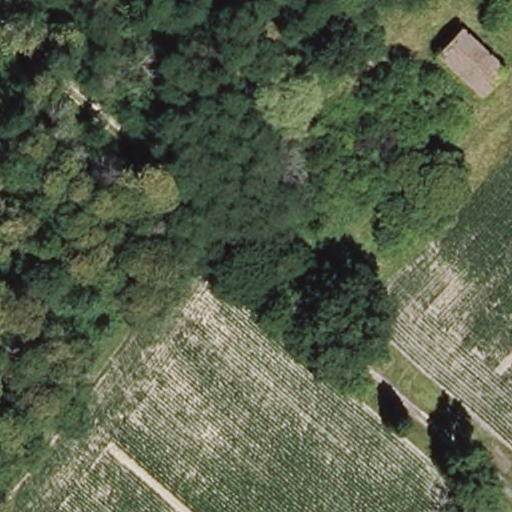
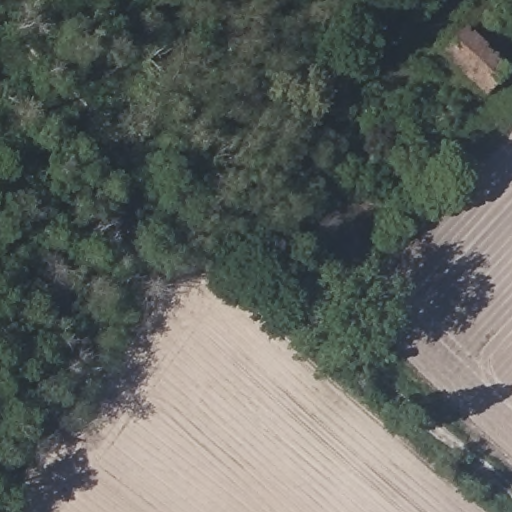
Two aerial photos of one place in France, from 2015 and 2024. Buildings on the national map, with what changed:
unchanged [(481,89),(443,54),(461,35),(500,69),(481,89)]

